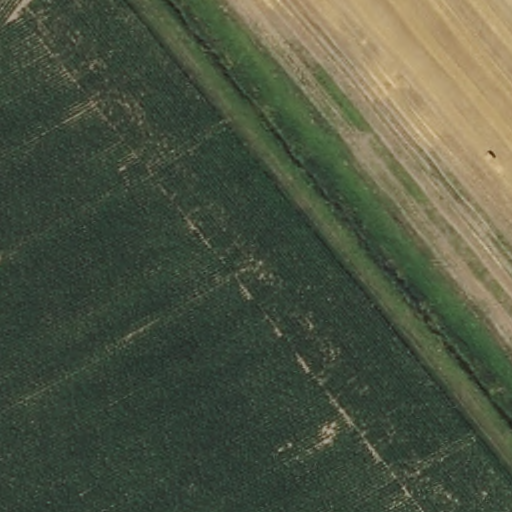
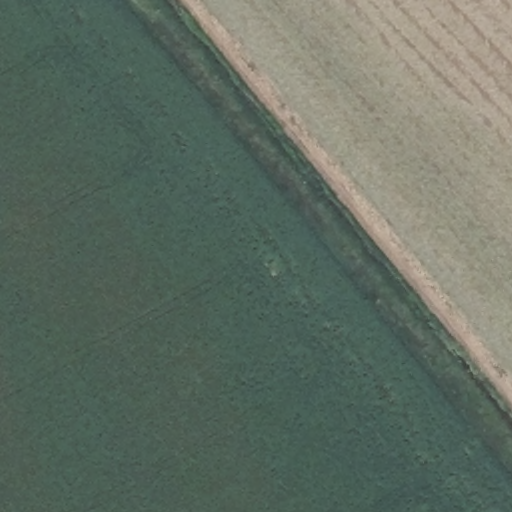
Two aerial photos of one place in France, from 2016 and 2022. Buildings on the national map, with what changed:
[]

